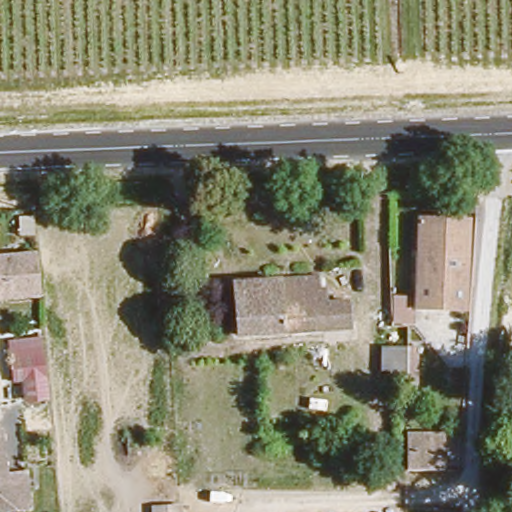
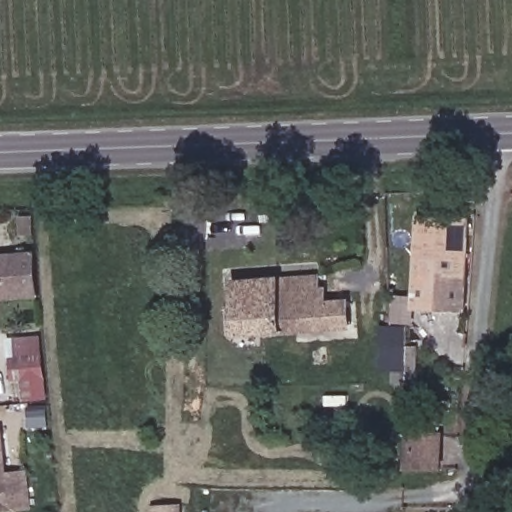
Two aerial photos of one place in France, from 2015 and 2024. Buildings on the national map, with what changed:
unchanged [(464,212),(469,302),(416,307),(409,219),(464,212)]
unchanged [(37,251),(42,297),(0,301),(0,253),(37,251)]
unchanged [(233,326),(228,275),(318,267),(320,297),(343,294),(353,293),(356,315),(346,316),(233,326)]
unchanged [(50,400),(20,402),(19,382),(9,382),(5,340),(41,337),(50,400)]
unchanged [(389,348),(399,348),(407,348),(407,357),(406,383),(398,384),(389,384),(389,358),(389,348)]
unchanged [(407,430),(445,430),(443,467),(407,466),(407,430)]
unchanged [(7,482),(24,479),(30,512),(0,512),(0,442),(7,482)]
unchanged [(149,512),(149,502),(182,501),(183,512),(149,512)]

